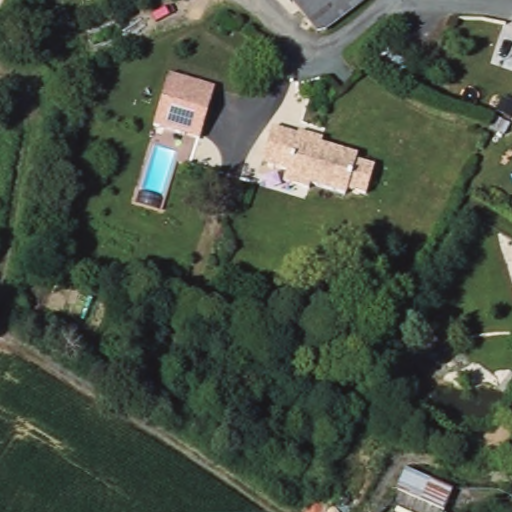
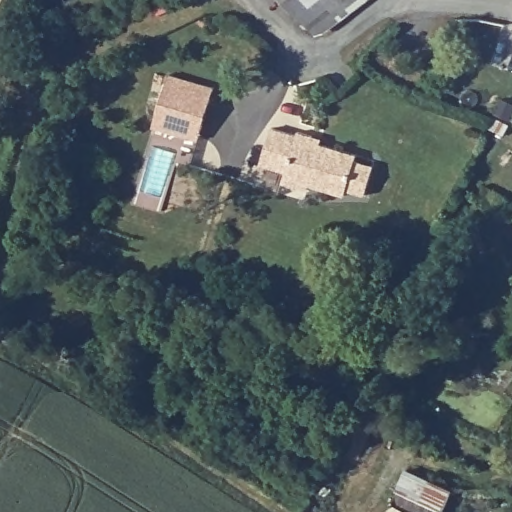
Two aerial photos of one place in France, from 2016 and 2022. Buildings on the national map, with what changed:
unchanged [(323,30),(295,0),(366,0),(327,30),(323,30)]
unchanged [(169,76),(214,90),(199,142),(154,129),(169,76)]
unchanged [(511,124),(505,134),(498,131),(490,126),(496,116),(511,124)]
unchanged [(304,127),(319,132),(328,135),(327,140),(363,151),(361,156),(380,161),(372,190),(353,185),(352,190),(316,180),(315,185),(289,178),(293,167),(274,162),(267,160),(273,139),(277,124),(303,131),(304,127)]

